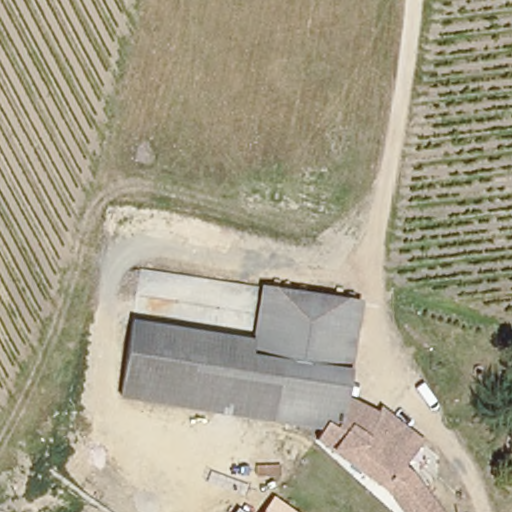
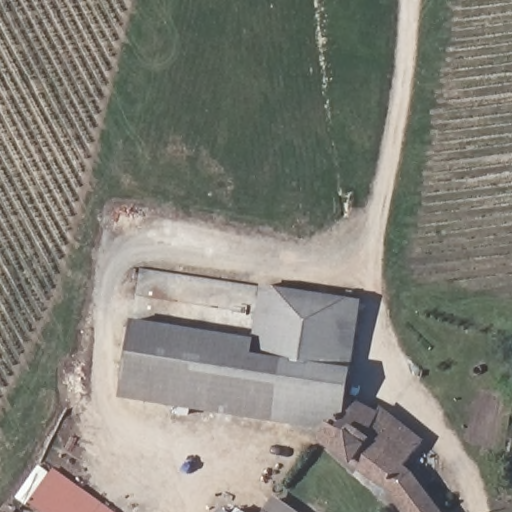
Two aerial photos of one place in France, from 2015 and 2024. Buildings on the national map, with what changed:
unchanged [(361,308),(347,402),(336,397),(317,427),(280,424),(271,423),(276,364),(252,361),(255,341),(264,292),(361,308)]
unchanged [(255,341),(252,361),(276,364),(271,423),(245,420),(246,398),(215,414),(120,401),(122,377),(132,323),(199,332),(255,341)]
unchanged [(347,402),(387,423),(408,442),(415,448),(415,458),(410,470),(441,512),(404,512),(391,495),(322,442),(327,431),(317,427),(336,397),(347,402)]
new [(113,512),(38,512),(16,496),(37,465),(49,473),(51,469),(113,512)]
unchanged [(294,512),(263,512),(273,497),(294,512)]
unchanged [(234,512),(237,508),(243,512),(234,512)]

